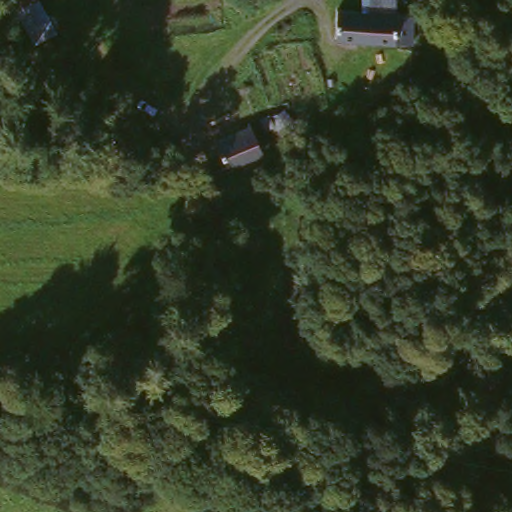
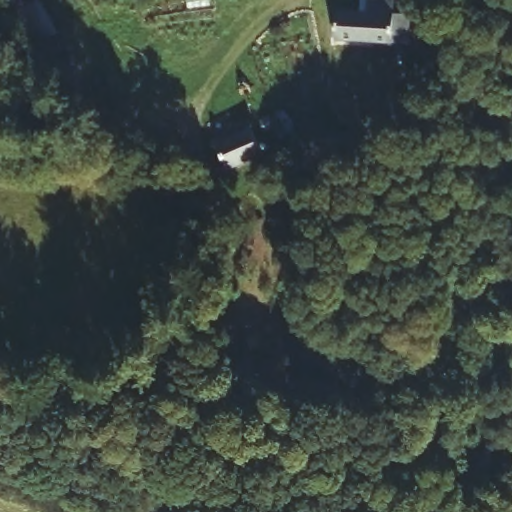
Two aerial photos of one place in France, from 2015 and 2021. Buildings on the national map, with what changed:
unchanged [(334,49),(330,16),(408,17),(408,51),(334,49)]
unchanged [(259,130),(272,159),(222,182),(209,154),(259,130)]

